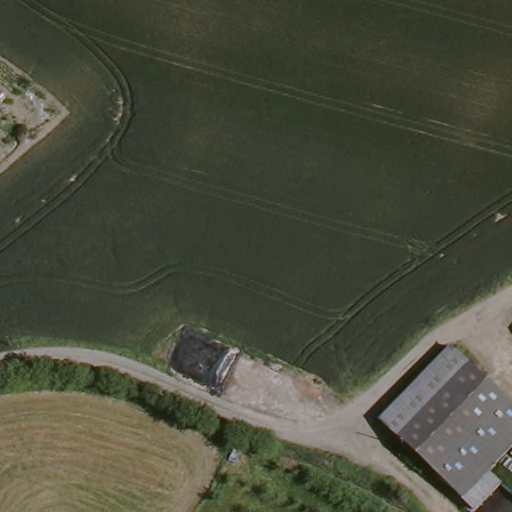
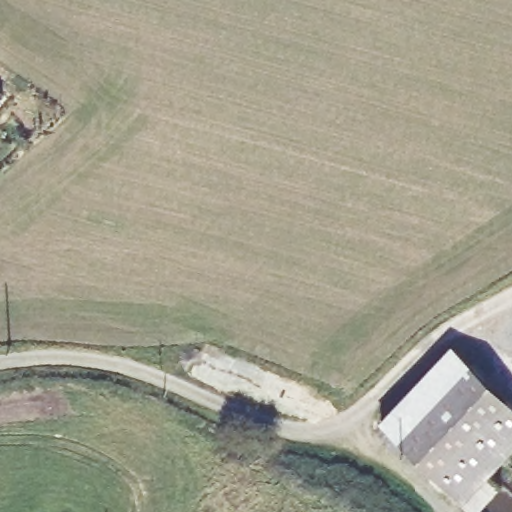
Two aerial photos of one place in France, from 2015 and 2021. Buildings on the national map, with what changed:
unchanged [(399,443),(467,364),(507,401),(440,479),(399,443)]
unchanged [(490,472),(504,484),(480,512),(475,512),(440,479),(507,401),(512,406),(512,446),(490,472)]

